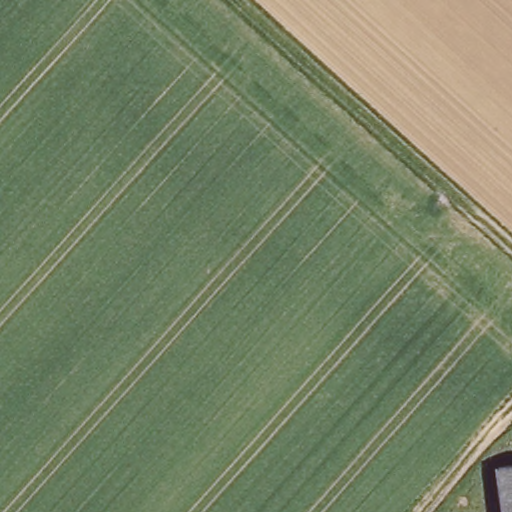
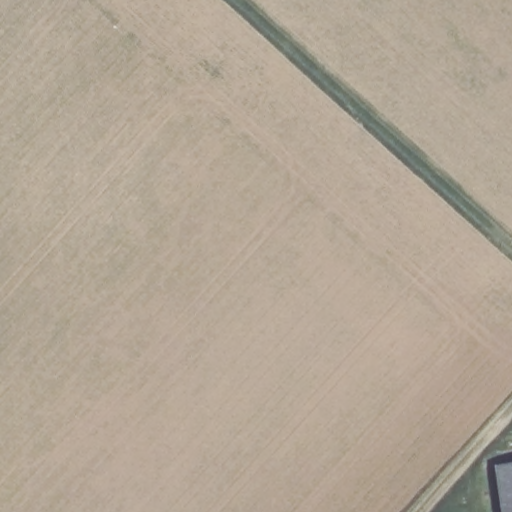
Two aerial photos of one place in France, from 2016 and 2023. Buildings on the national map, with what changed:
unchanged [(512,464),(512,512),(501,512),(495,467),(512,464)]

